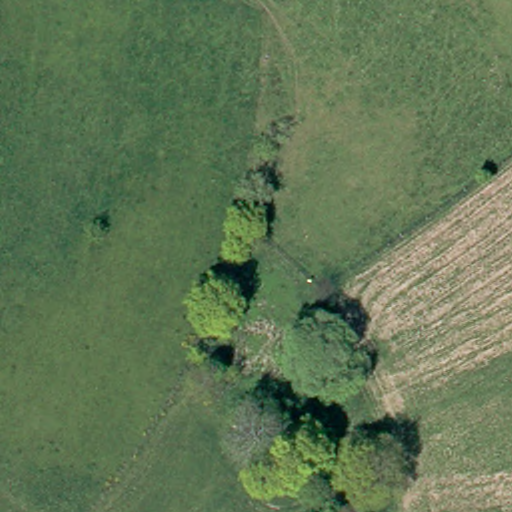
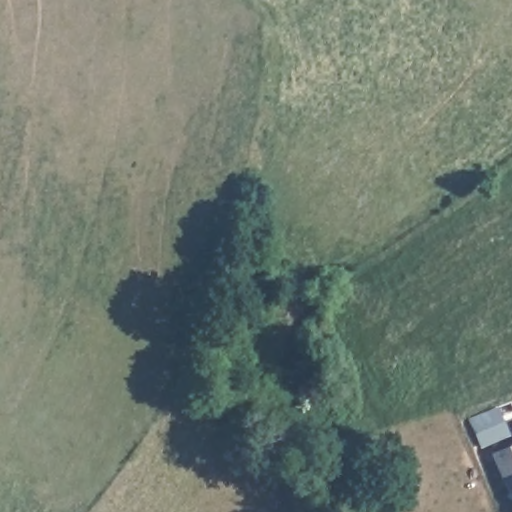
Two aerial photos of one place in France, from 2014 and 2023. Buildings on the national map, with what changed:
new [(496,407),(508,433),(482,445),(469,419),(496,407)]
new [(512,445),(512,491),(495,453),(512,445)]

